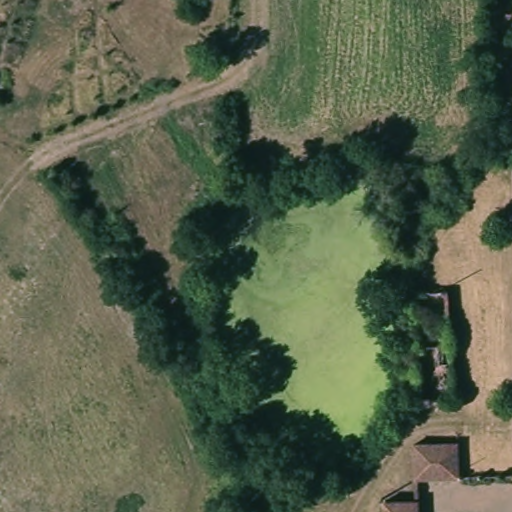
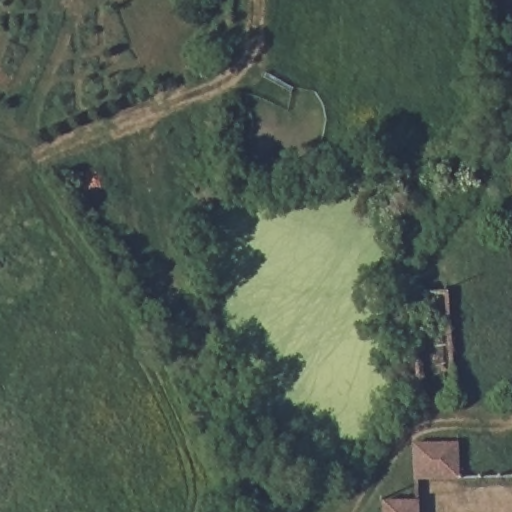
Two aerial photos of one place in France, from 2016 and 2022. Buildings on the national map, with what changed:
unchanged [(422,440),(460,440),(463,473),(415,475),(414,440),(422,440)]
unchanged [(411,500),(417,500),(417,512),(380,512),(380,501),(411,500)]

